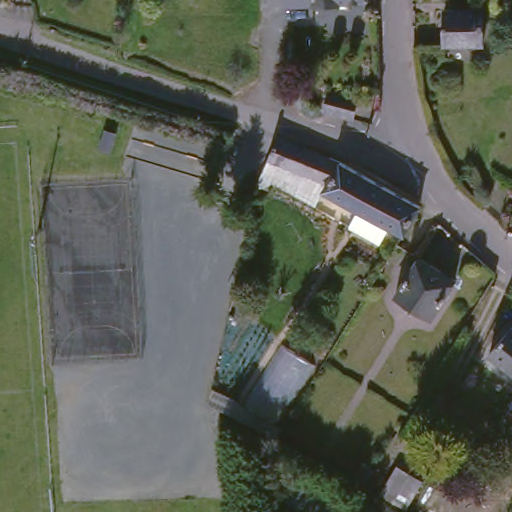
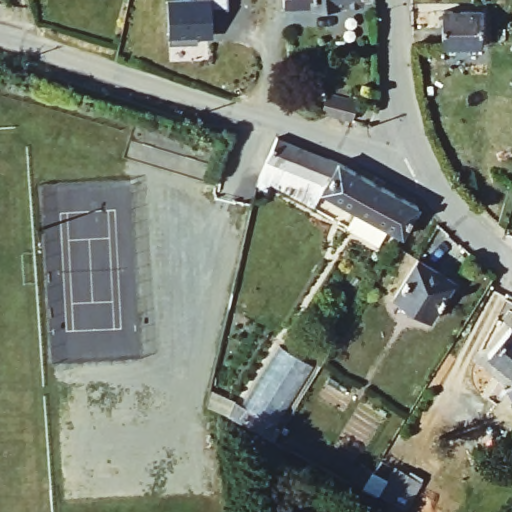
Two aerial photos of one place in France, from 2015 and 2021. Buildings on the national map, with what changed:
new [(167,0),(227,0),(228,6),(211,8),(213,37),(213,39),(198,40),(198,44),(169,45),(168,37),(167,0)]
unchanged [(336,10),(336,12),(313,14),(308,15),(284,16),(283,0),(362,0),(362,8),(336,10)]
unchanged [(481,13),(479,48),(438,45),(439,9),(481,13)]
unchanged [(344,106),(341,124),(312,119),(317,100),(344,106)]
unchanged [(333,228),(346,212),(315,188),(321,180),(271,146),(279,124),(343,166),(406,214),(406,218),(386,244),(374,235),(361,250),(333,228)]
unchanged [(305,200),(264,169),(271,146),(321,180),(315,188),(305,200)]
unchanged [(450,289),(431,321),(401,304),(390,298),(411,266),(450,289)]
unchanged [(508,339),(512,341),(512,381),(493,369),(508,339)]
unchanged [(359,465),(369,470),(362,489),(359,487),(351,483),(359,465)]
unchanged [(419,479),(402,509),(378,495),(395,466),(419,479)]

